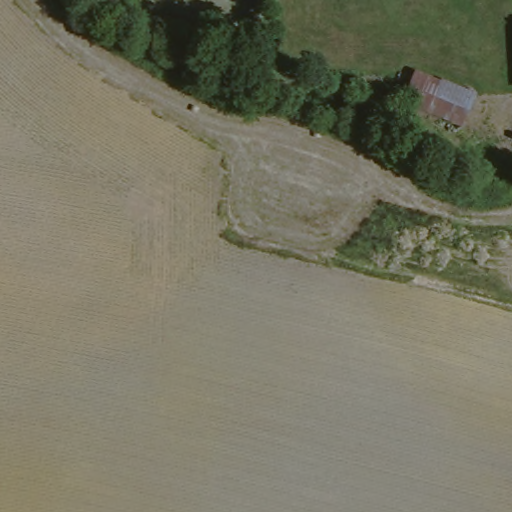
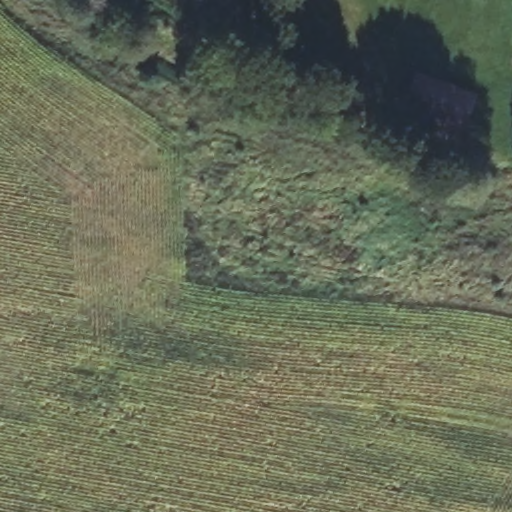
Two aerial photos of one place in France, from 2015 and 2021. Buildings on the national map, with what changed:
unchanged [(470,96),(457,129),(400,108),(410,73),(470,96)]

